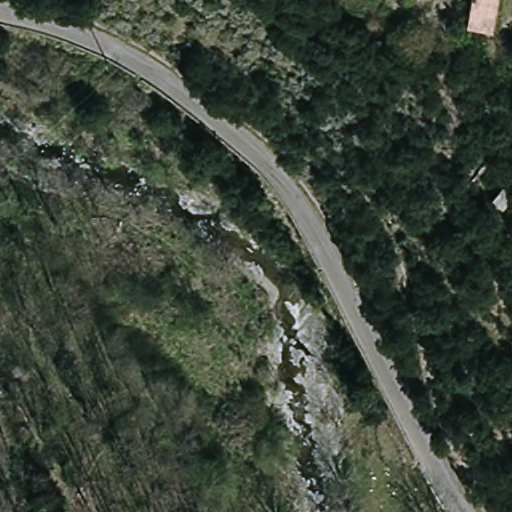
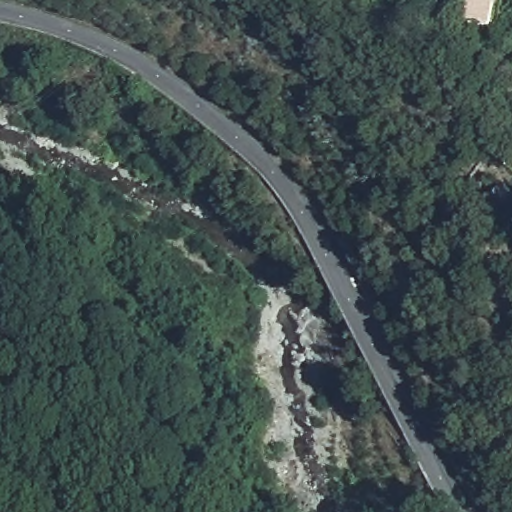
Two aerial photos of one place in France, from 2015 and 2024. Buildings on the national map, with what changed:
unchanged [(487,24),(467,16),(467,15),(467,14),(472,0),(496,0),(487,24)]

